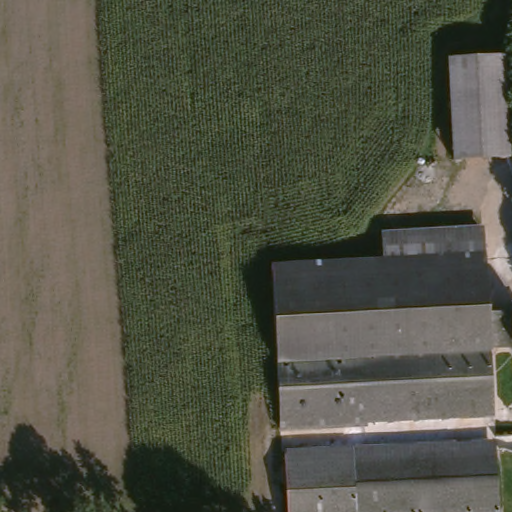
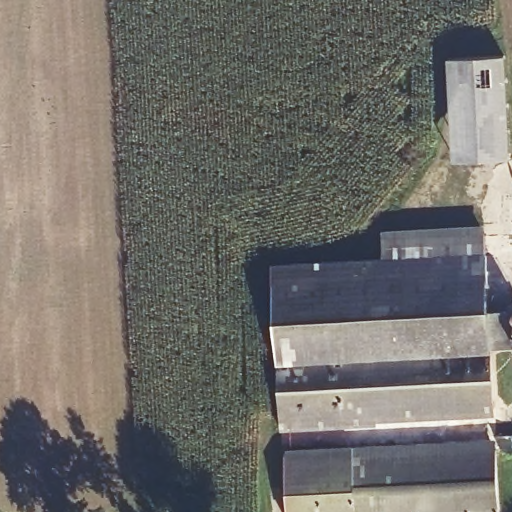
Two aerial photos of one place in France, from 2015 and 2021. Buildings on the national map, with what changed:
unchanged [(451,166),(445,64),(502,60),(511,162),(451,166)]
unchanged [(495,354),(499,413),(288,426),(278,270),(388,264),(388,243),(490,237),(494,316),(512,316),(512,353),(495,354)]
unchanged [(503,509),(459,512),(291,512),(287,454),(500,441),(503,509)]

